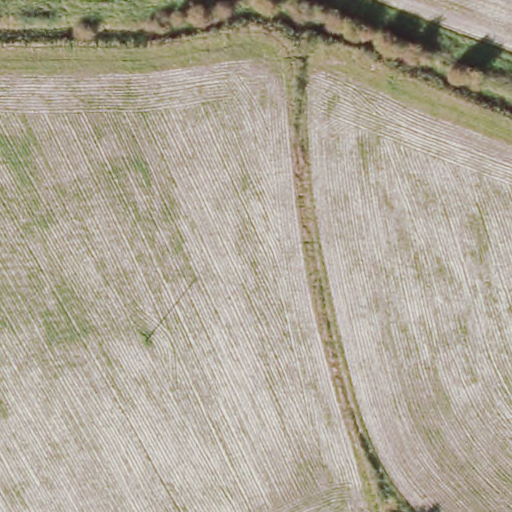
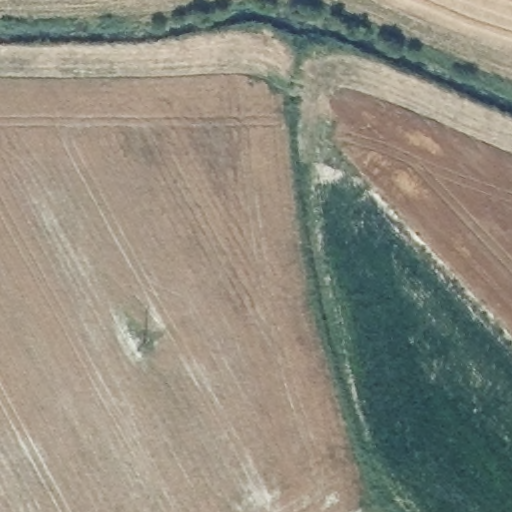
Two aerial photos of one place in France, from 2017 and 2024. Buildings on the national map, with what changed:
[]

